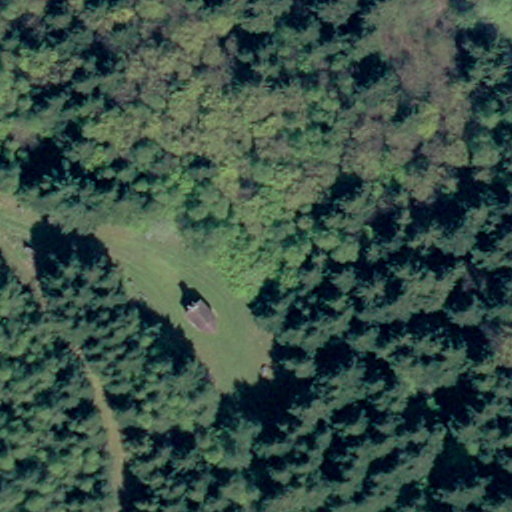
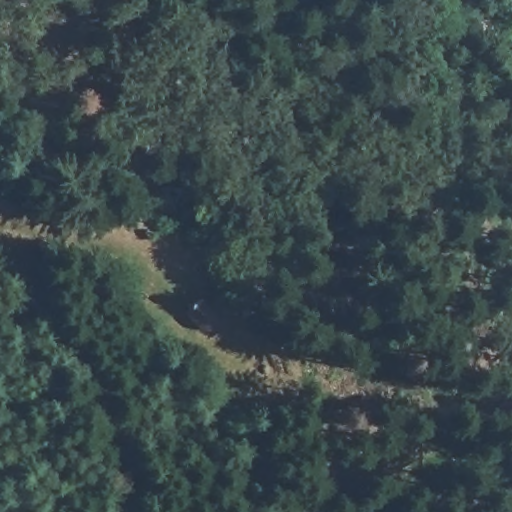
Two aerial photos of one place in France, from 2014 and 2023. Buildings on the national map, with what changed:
unchanged [(198,328),(182,315),(183,313),(190,308),(210,324),(204,331),(198,328)]

